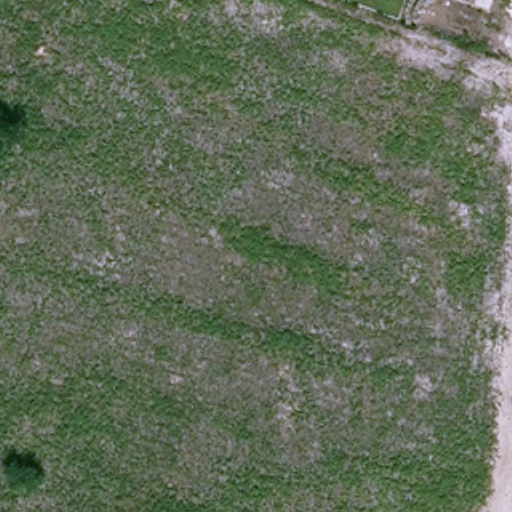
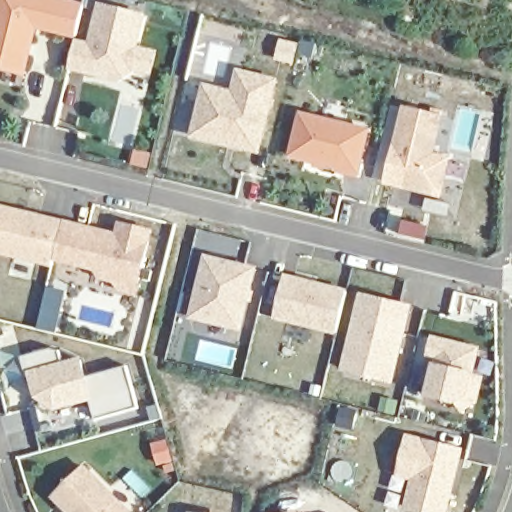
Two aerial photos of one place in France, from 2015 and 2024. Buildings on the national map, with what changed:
new [(0,0),(70,0),(83,3),(76,37),(36,27),(25,74),(0,69),(0,0)]
new [(69,69),(76,40),(90,41),(98,3),(146,13),(139,47),(158,51),(153,75),(134,72),(119,81),(69,69)]
new [(190,137),(203,84),(231,89),(237,69),(278,79),(259,154),(190,137)]
new [(441,199),(383,183),(403,106),(443,116),(435,154),(451,158),(441,199)]
new [(359,177),(337,172),(338,167),(289,155),(300,111),(370,129),(359,175),(359,177)]
new [(121,293),(113,282),(99,280),(95,272),(53,260),(52,267),(0,254),(0,204),(115,232),(118,222),(152,230),(137,296),(121,293)]
new [(204,254),(257,267),(241,332),(190,318),(204,254)]
new [(284,273),(347,288),(336,335),(274,319),(284,273)]
new [(341,370),(359,292),(413,304),(394,384),(341,370)]
new [(473,373),(484,376),(478,403),(461,412),(457,405),(425,395),(433,363),(426,361),(432,335),(480,347),(473,373)]
new [(138,407),(95,417),(89,402),(55,411),(34,397),(29,374),(25,375),(21,357),(60,349),(62,362),(82,357),(87,377),(126,367),(138,407)]
new [(411,480),(397,477),(407,433),(466,447),(450,512),(413,512),(404,510),(411,480)]
new [(52,496),(85,463),(132,512),(67,512),(52,496)]
new [(297,511),(297,512),(289,512),(297,511)]

